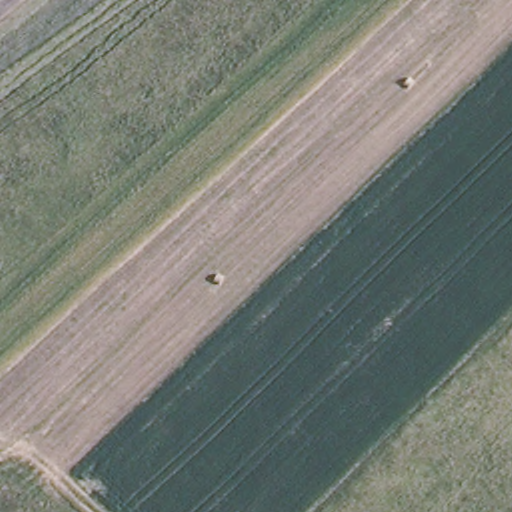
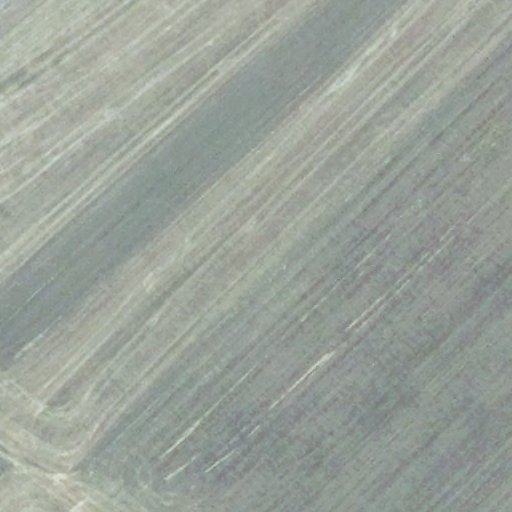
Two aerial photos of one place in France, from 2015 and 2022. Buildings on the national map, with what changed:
[]

